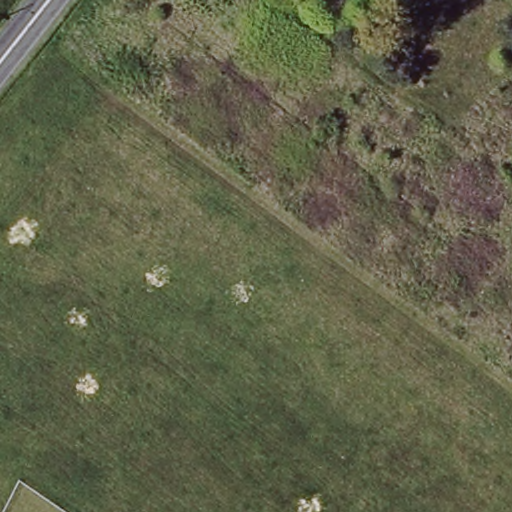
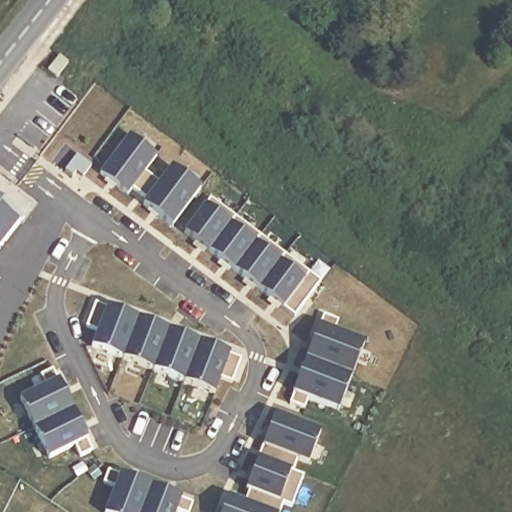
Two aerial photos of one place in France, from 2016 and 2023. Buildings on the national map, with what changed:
new [(68,62),(56,77),(48,70),(58,55),(68,62)]
new [(156,155),(144,171),(159,183),(171,167),(200,189),(172,226),(143,205),(146,200),(132,188),(128,193),(101,172),(129,135),(156,155)]
new [(90,165),(82,177),(75,172),(72,176),(64,170),(76,155),(90,165)]
new [(210,199),(321,281),(294,316),(184,233),(210,199)]
new [(0,206),(20,222),(0,248),(0,206)]
new [(229,353),(241,358),(231,382),(220,377),(214,393),(91,347),(98,331),(86,326),(95,302),(106,307),(107,306),(229,353)]
new [(319,325),(320,325),(324,315),(338,321),(334,331),(364,343),(339,410),(308,398),(304,408),(289,403),(294,392),(293,392),(319,325)]
new [(87,439),(86,440),(92,450),(80,456),(74,445),(48,458),(19,399),(46,386),(40,375),(53,370),(58,380),(87,439)]
new [(244,502),(249,490),(246,489),(274,414),(320,431),(308,463),(297,459),(293,471),(303,475),(291,506),(283,503),(279,512),(222,512),(228,496),(244,502)]
new [(103,483),(108,470),(120,475),(120,474),(181,496),(181,497),(193,502),(189,512),(180,512),(176,510),(175,512),(105,512),(115,487),(103,483)]

